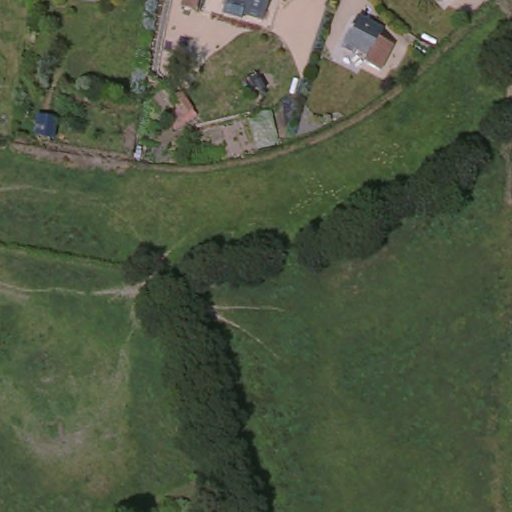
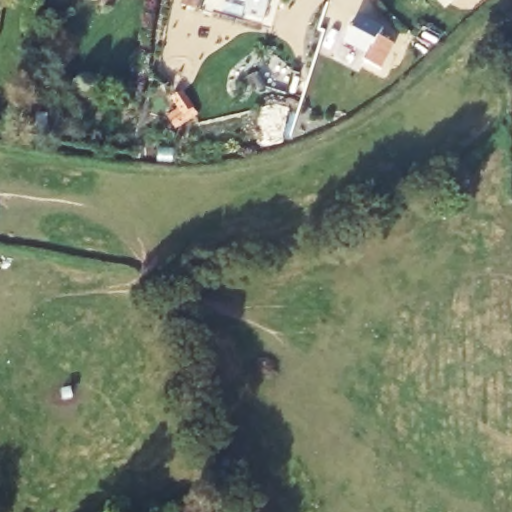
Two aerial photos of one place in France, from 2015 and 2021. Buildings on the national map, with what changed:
unchanged [(249,23),(251,11),(211,1),(203,18),(185,13),(188,0),(276,0),(269,26),(249,23)]
unchanged [(384,29),(379,38),(396,46),(383,74),(366,65),(370,58),(355,52),(351,56),(342,51),(358,19),(384,29)]

